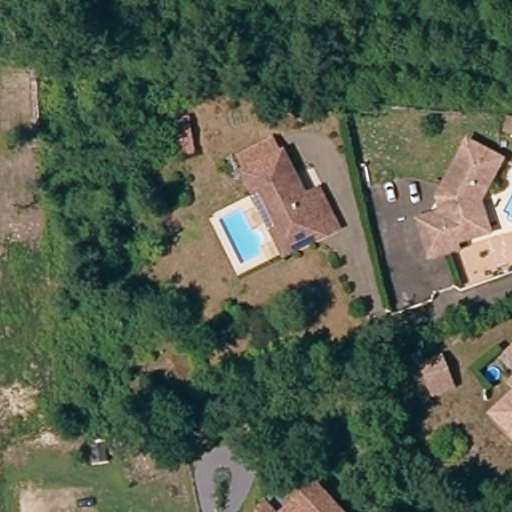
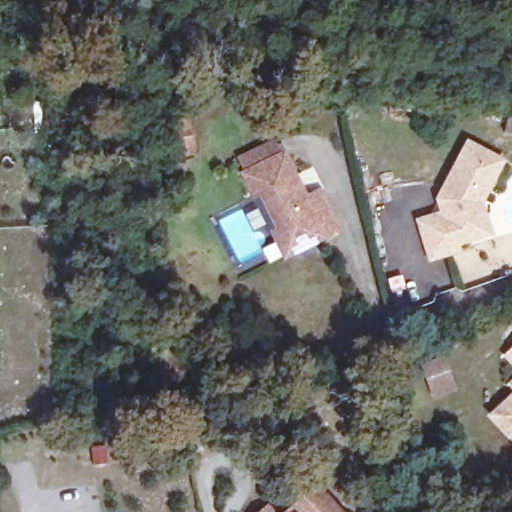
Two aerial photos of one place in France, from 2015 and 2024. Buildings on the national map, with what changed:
unchanged [(438,206),(436,200),(434,191),(437,184),(463,135),(498,153),(476,195),(480,206),(466,232),(452,236),(454,243),(440,247),(426,252),(414,214),(438,206)]
unchanged [(261,206),(244,173),(248,171),(241,159),(276,141),(282,154),(285,153),(307,197),(321,190),(340,229),(326,237),(286,257),(261,206)]
unchanged [(512,349),(512,363),(505,355),(512,349)]
unchanged [(441,389),(432,365),(451,358),(460,382),(441,389)]
unchanged [(512,378),(512,389),(507,383),(512,378)]
unchanged [(512,395),(512,438),(491,415),(512,395)]
unchanged [(342,512),(278,512),(312,478),(342,512)]
unchanged [(275,512),(252,512),(264,501),(275,512)]

